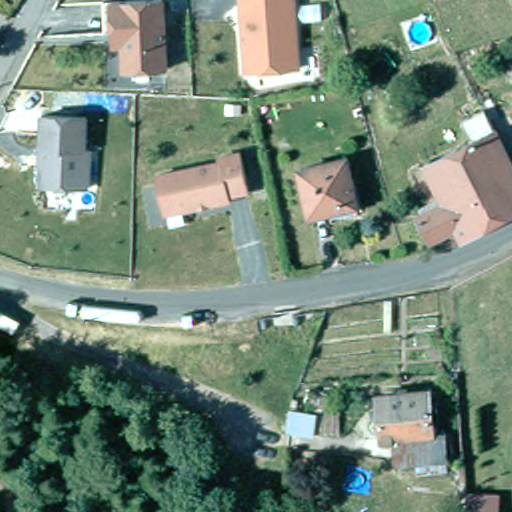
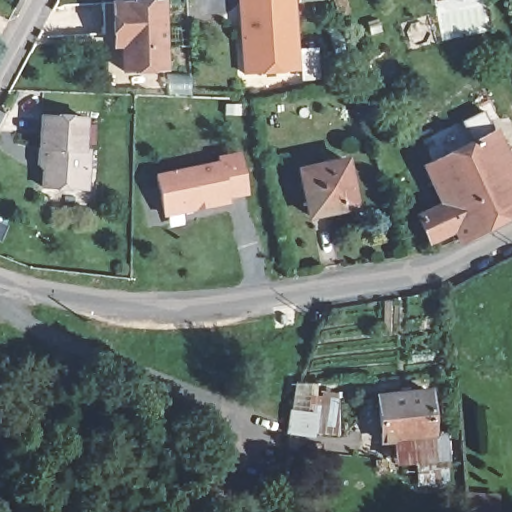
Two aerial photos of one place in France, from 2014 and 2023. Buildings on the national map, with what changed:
unchanged [(110,29),(100,29),(99,0),(159,0),(160,66),(119,67),(119,41),(110,41),(110,29)]
unchanged [(247,1),(242,2),(241,0),(295,0),(298,52),(293,52),(294,70),(245,73),(244,35),(249,35),(247,1)]
unchanged [(457,226),(451,229),(450,226),(429,237),(417,213),(444,200),(425,161),(473,137),(462,116),(484,105),(512,162),(512,212),(464,239),(457,226)]
unchanged [(38,147),(40,113),(84,115),(82,147),(87,147),(85,186),(41,183),(43,160),(38,160),(38,147)]
unchanged [(217,161),(217,156),(238,152),(246,192),(225,196),(226,200),(162,212),(154,172),(217,161)]
unchanged [(296,164),(342,153),(352,201),(306,210),(296,164)]
unchanged [(384,439),(381,394),(428,390),(432,435),(444,434),(446,447),(454,446),(455,455),(416,459),(415,437),(384,439)]
unchanged [(301,393),(324,401),(314,427),(292,420),(301,393)]

